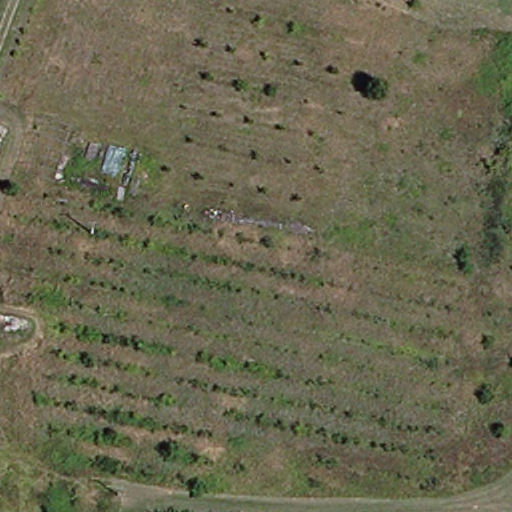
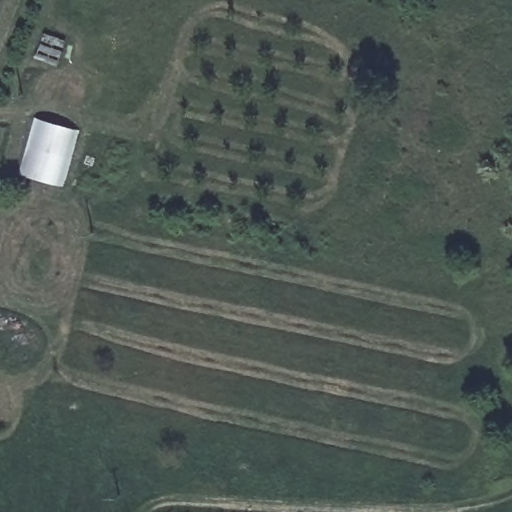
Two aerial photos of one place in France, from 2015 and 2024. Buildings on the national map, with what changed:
new [(34,118),(78,131),(62,186),(20,175),(34,118)]

